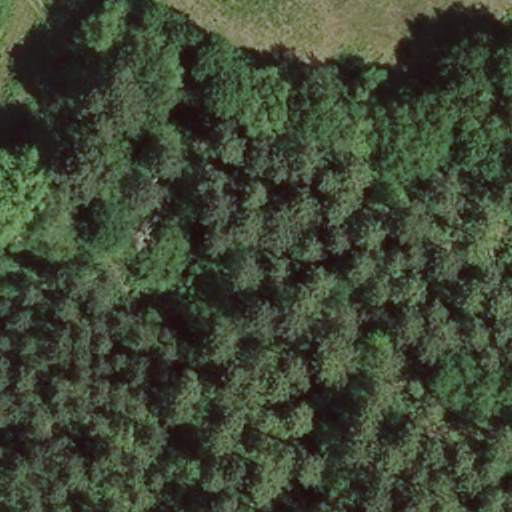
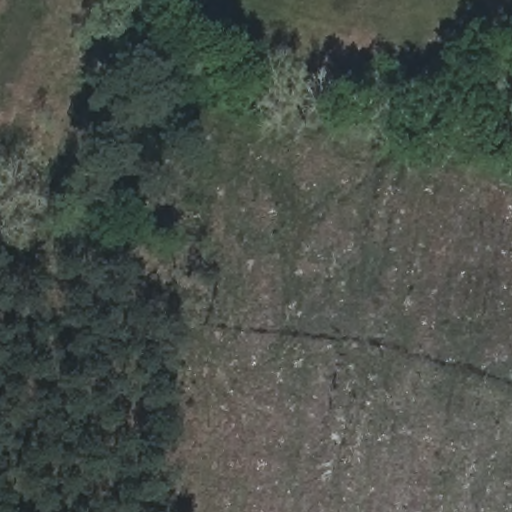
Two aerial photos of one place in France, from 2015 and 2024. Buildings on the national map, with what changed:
[]

